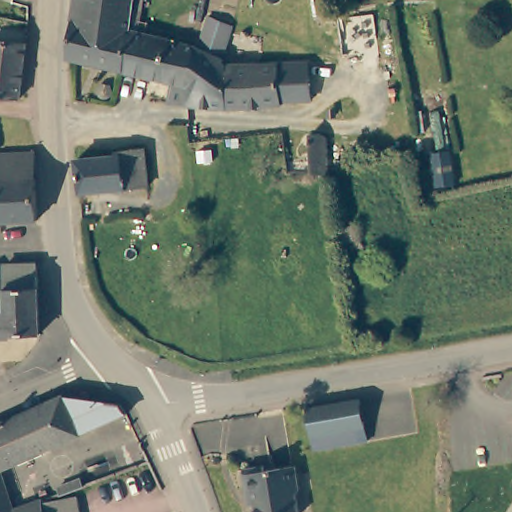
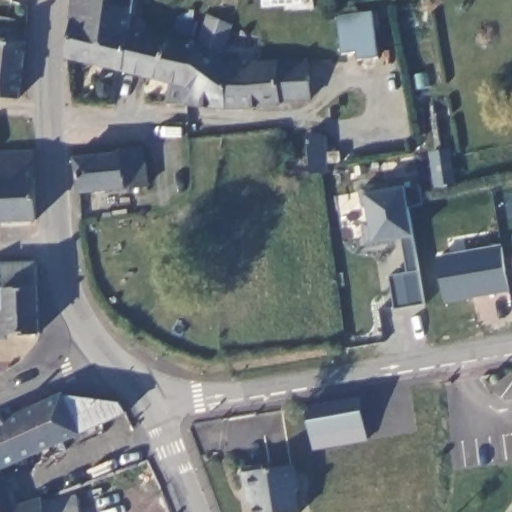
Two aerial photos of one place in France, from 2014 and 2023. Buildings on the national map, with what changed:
unchanged [(135,35),(126,75),(70,62),(77,0),(139,0),(135,35)]
unchanged [(358,53),(343,54),(338,14),(373,12),(380,59),(358,61),(358,53)]
unchanged [(206,30),(212,15),(236,27),(226,62),(203,52),(199,51),(206,30)]
unchanged [(24,38),(18,93),(0,90),(0,34),(24,38)]
unchanged [(199,51),(195,110),(170,108),(173,86),(126,75),(135,35),(199,51)]
unchanged [(314,104),(283,105),(283,109),(218,111),(195,110),(199,51),(203,52),(226,62),(227,67),(282,67),(313,66),(314,104)]
unchanged [(108,86),(110,89),(111,93),(109,96),(106,98),(103,99),(100,98),(97,96),(95,94),(95,90),(96,88),(98,86),(100,85),(108,86)]
unchanged [(308,135),(323,135),(328,173),(323,174),(311,174),(308,135)]
unchanged [(113,153),(113,150),(143,148),(147,185),(80,193),(75,157),(113,153)]
unchanged [(33,152),(35,221),(0,221),(0,153),(33,152)]
new [(410,208),(415,237),(428,304),(398,309),(391,277),(407,273),(403,240),(374,244),(366,196),(408,189),(422,185),(425,205),(410,208)]
new [(437,259),(502,248),(509,291),(445,302),(437,259)]
unchanged [(3,311),(4,292),(4,269),(37,267),(38,291),(40,332),(39,336),(0,336),(0,311),(3,311)]
unchanged [(355,395),(361,437),(309,446),(303,403),(355,395)]
unchanged [(64,397),(118,404),(126,414),(0,468),(0,425),(64,397)]
unchanged [(268,477),(299,472),(303,495),(299,500),(301,512),(261,512),(259,500),(253,501),(248,475),(267,473),(268,477)]
unchanged [(40,498),(40,501),(42,512),(0,512),(0,474),(13,508),(40,498)]
unchanged [(79,512),(46,512),(44,502),(75,496),(79,512)]

